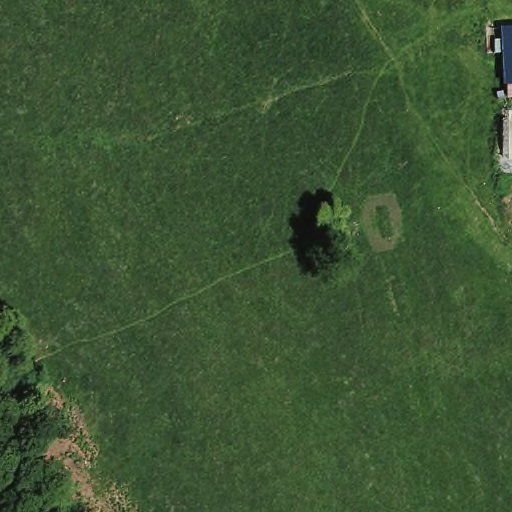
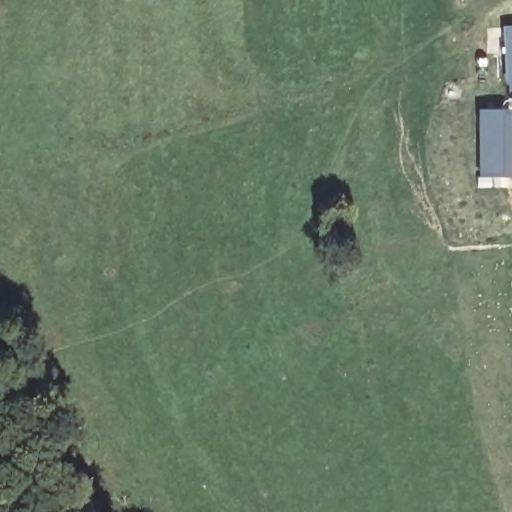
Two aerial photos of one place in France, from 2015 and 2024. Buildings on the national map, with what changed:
unchanged [(506,85),(501,27),(512,26),(512,85),(506,85)]
new [(511,111),(508,180),(475,178),(476,113),(511,111)]

